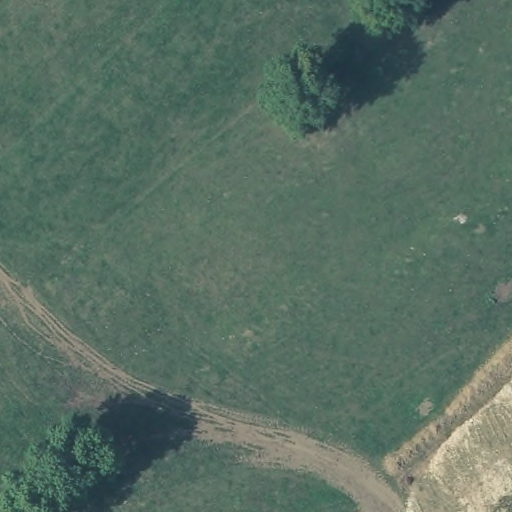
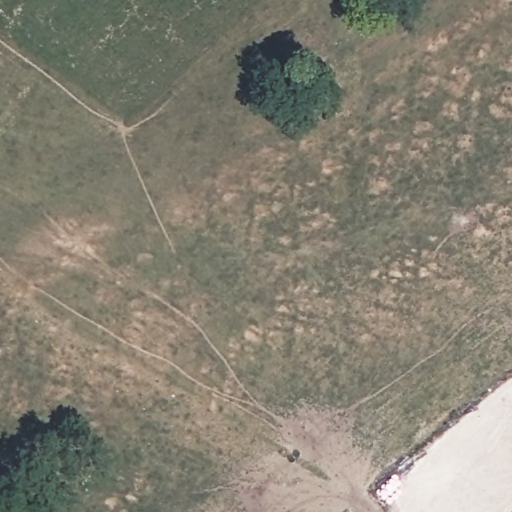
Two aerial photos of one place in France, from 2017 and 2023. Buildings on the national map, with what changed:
[]

